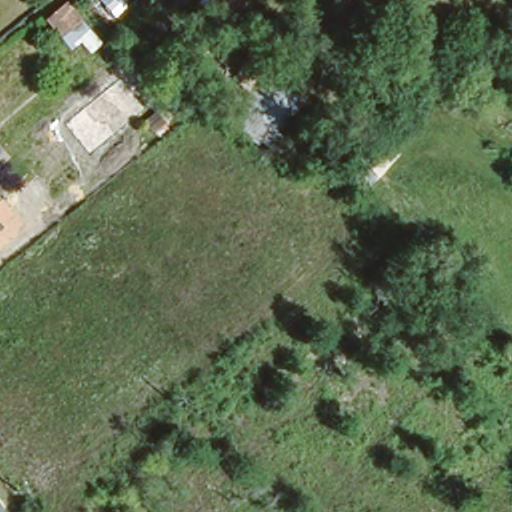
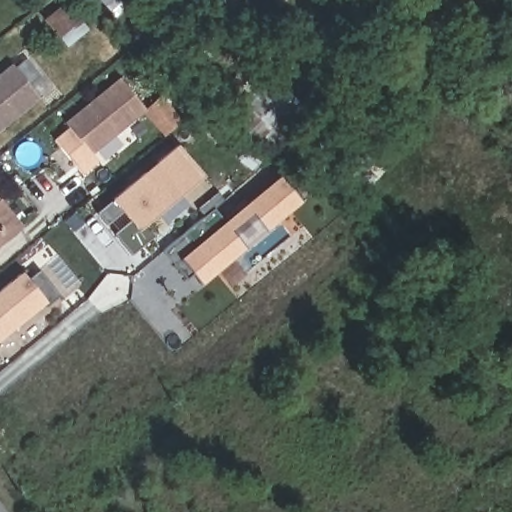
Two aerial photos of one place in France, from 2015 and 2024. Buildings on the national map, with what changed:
new [(203,0),(240,0),(228,19),(203,0)]
unchanged [(86,40),(69,54),(49,30),(66,16),(86,40)]
new [(38,98),(0,129),(0,72),(10,63),(38,98)]
unchanged [(269,74),(307,109),(278,144),(237,111),(269,74)]
new [(63,122),(119,77),(145,109),(161,95),(183,121),(163,137),(142,114),(89,155),(63,122)]
new [(67,127),(89,155),(92,152),(98,160),(82,174),(53,140),(67,127)]
new [(153,237),(130,255),(113,235),(128,222),(120,211),(104,225),(95,213),(176,145),(204,175),(143,225),(153,237)]
new [(203,216),(196,208),(216,191),(223,200),(213,208),(225,220),(278,175),(300,201),(265,230),(263,229),(244,246),(244,248),(201,284),(190,270),(185,277),(162,250),(203,216)]
unchanged [(0,235),(0,199),(17,222),(0,235)]
new [(26,278),(37,270),(57,294),(0,341),(0,289),(21,271),(26,278)]

